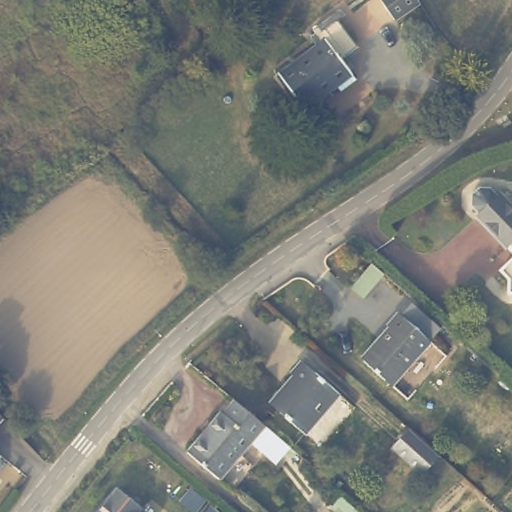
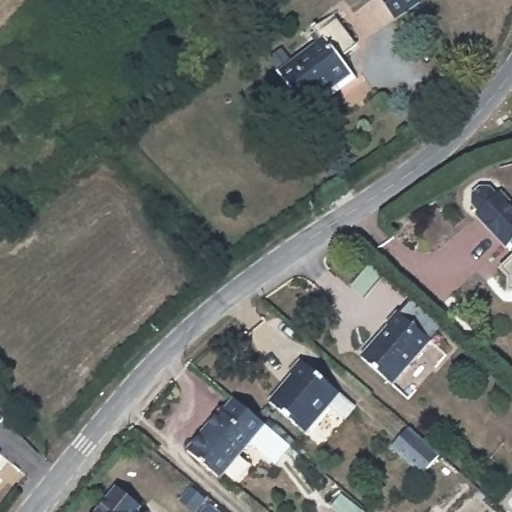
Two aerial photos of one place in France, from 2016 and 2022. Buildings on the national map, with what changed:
unchanged [(410,2),(385,19),(372,0),(408,0),(410,2)]
unchanged [(323,90),(299,107),(273,73),(311,44),(305,37),(311,33),(307,27),(336,6),(340,12),(332,17),(350,42),(352,45),(335,57),(342,66),(347,72),(323,90)]
unchanged [(508,240),(502,245),(473,214),(476,211),(470,204),(469,192),(478,185),(487,185),(495,194),(498,191),(512,206),(512,244),(508,240)]
unchanged [(507,289),(508,278),(497,268),(512,255),(512,289),(507,289)]
unchanged [(431,341),(393,384),(362,357),(389,326),(387,323),(397,312),(431,341)]
unchanged [(333,397),(332,400),(336,402),(332,405),(330,403),(301,437),(265,407),(287,380),(285,377),(296,365),(333,397)]
unchanged [(258,429),(285,450),(272,465),(247,445),(215,483),(182,456),(217,415),(219,417),(230,404),(258,429)]
unchanged [(441,456),(424,475),(392,446),(408,427),(441,456)]
unchanged [(141,507),(137,512),(138,512),(97,512),(117,487),(141,507)]

